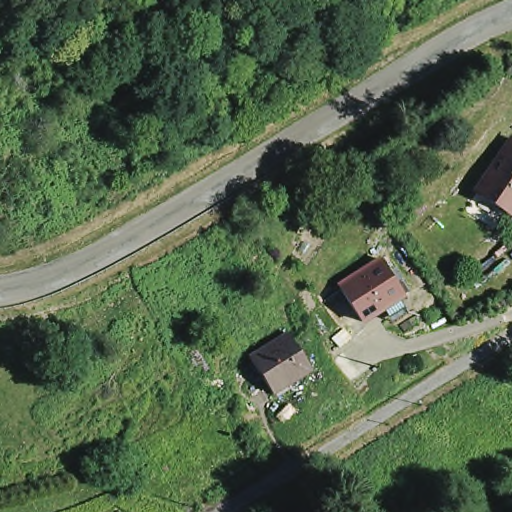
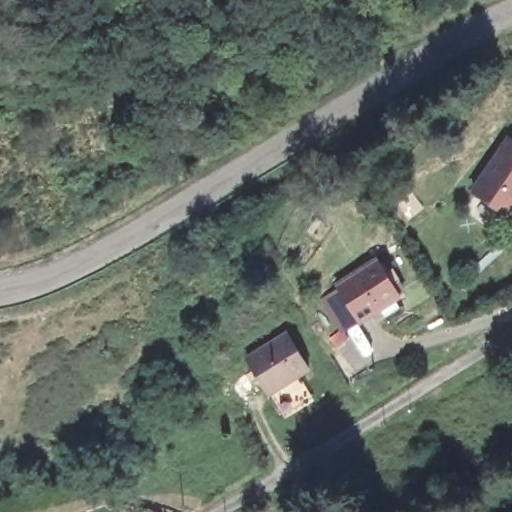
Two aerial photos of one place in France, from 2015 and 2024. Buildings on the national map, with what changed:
unchanged [(473,193),(510,136),(512,138),(512,219),(511,220),(473,193)]
unchanged [(336,294),(377,268),(400,305),(358,330),(336,294)]
unchanged [(241,363),(281,342),(301,380),(261,401),(241,363)]

